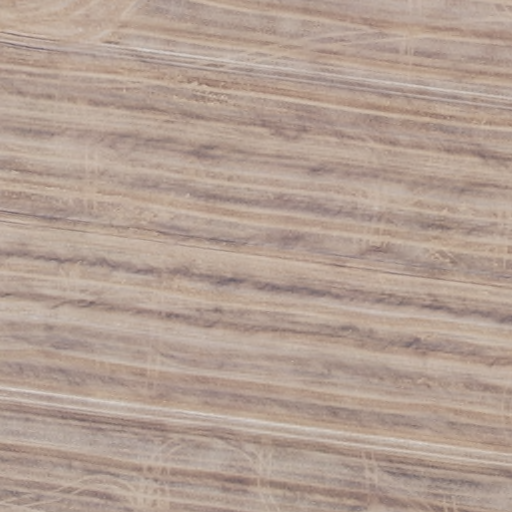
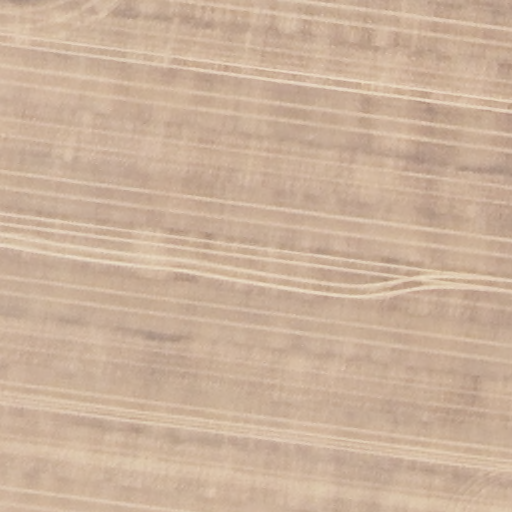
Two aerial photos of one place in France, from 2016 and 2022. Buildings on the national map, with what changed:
[]

